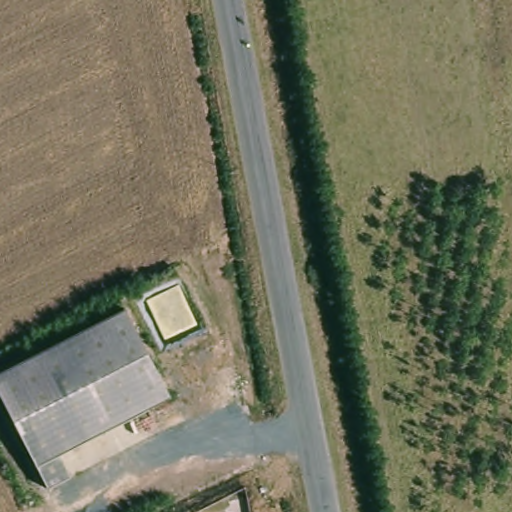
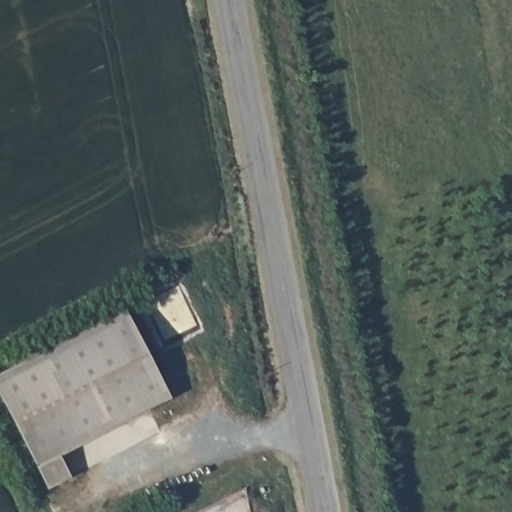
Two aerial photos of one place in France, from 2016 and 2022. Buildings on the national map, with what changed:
unchanged [(57,456),(69,477),(47,487),(0,394),(0,373),(125,309),(170,397),(57,456)]

